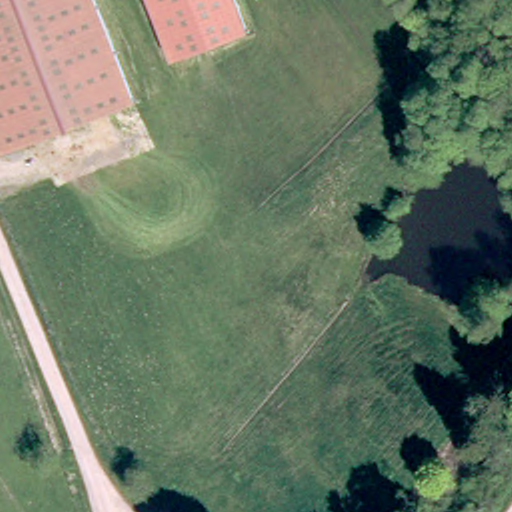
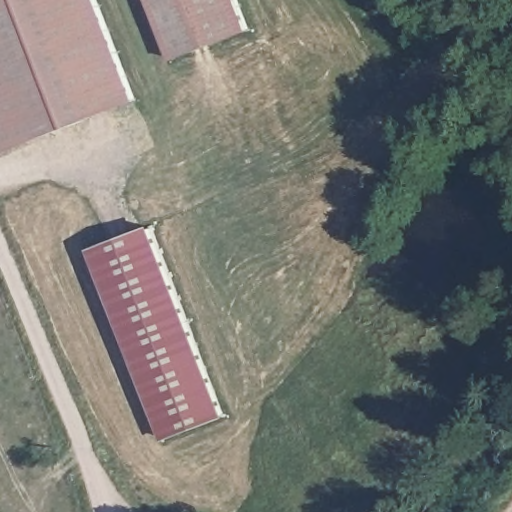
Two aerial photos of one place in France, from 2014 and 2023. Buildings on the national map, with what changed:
unchanged [(131,103),(1,154),(0,151),(0,0),(90,0),(131,103)]
unchanged [(254,27),(171,57),(149,0),(243,0),(254,27)]
new [(226,416),(165,438),(91,247),(153,224),(226,416)]

